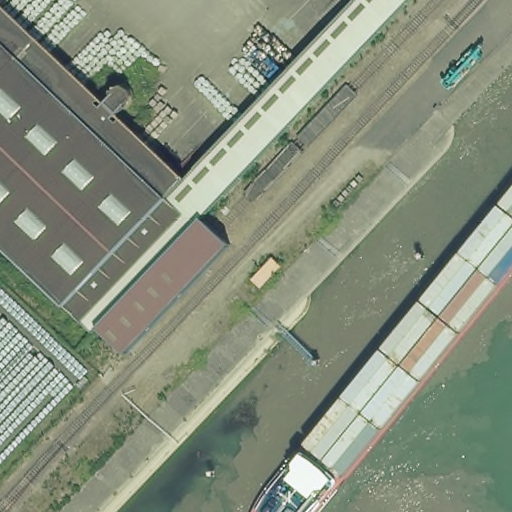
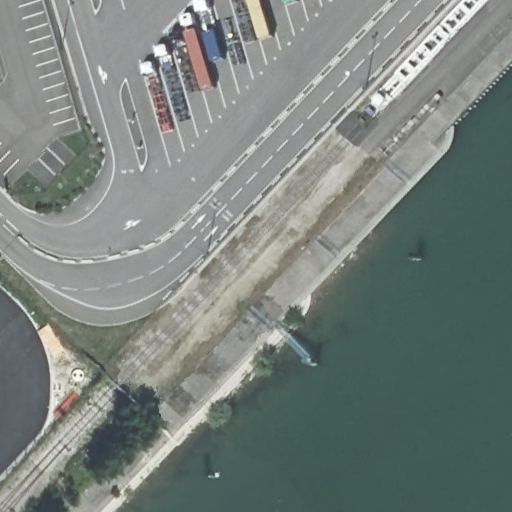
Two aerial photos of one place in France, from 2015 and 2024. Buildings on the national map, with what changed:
demolished [(103,342),(67,310),(0,245),(0,3),(107,104),(117,91),(125,91),(137,97),(138,110),(129,122),(190,181),(360,0),(423,0),(103,342)]

